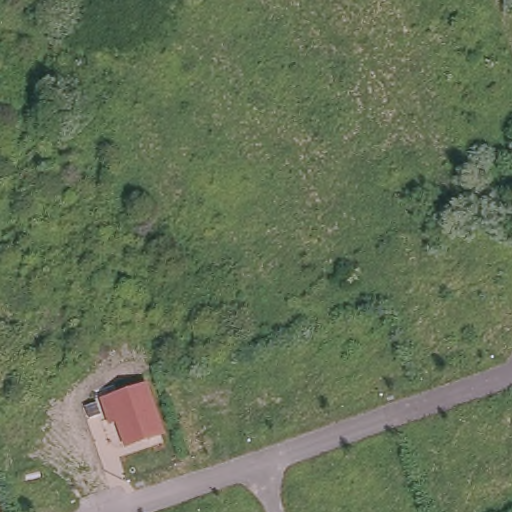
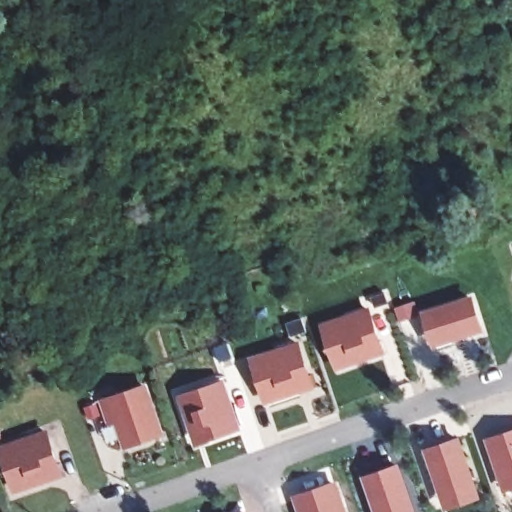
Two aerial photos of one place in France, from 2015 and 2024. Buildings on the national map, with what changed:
new [(486,331),(434,348),(421,311),(476,294),(486,331)]
new [(371,306),(387,353),(335,372),(319,324),(371,306)]
new [(251,361),(296,345),(306,376),(310,386),(264,401),(261,392),(251,361)]
new [(242,429),(196,446),(179,396),(226,379),(242,429)]
unchanged [(166,435),(128,448),(119,423),(110,427),(102,401),(149,384),(166,435)]
new [(512,430),(512,490),(503,493),(484,439),(512,430)]
new [(13,489),(9,480),(0,451),(0,448),(43,433),(53,464),(57,474),(13,489)]
new [(482,497),(447,510),(423,449),(462,436),(482,497)]
new [(418,512),(376,512),(362,476),(400,462),(418,512)]
new [(348,512),(298,512),(292,495),(337,480),(348,512)]
new [(251,512),(244,512),(250,510),(251,512)]

